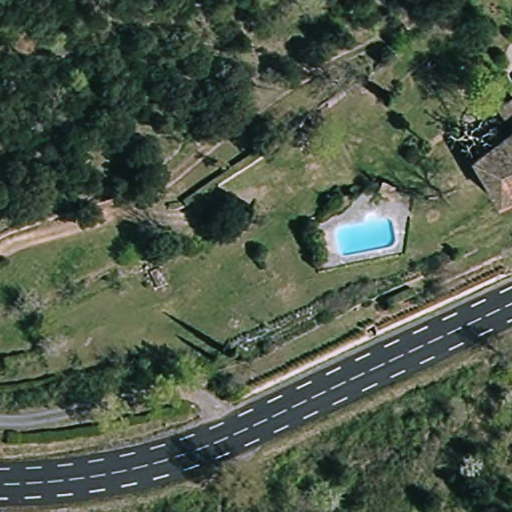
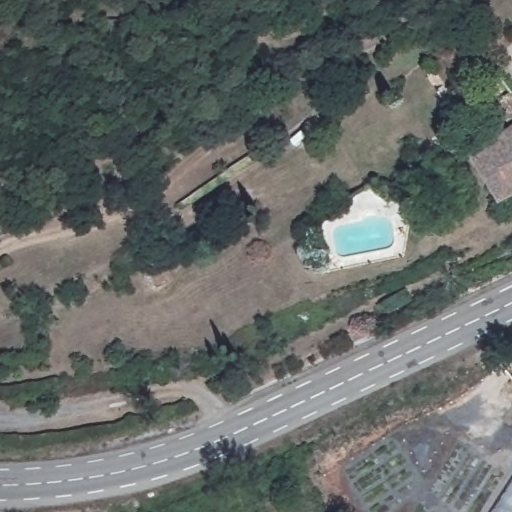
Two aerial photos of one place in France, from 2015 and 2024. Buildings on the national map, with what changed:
unchanged [(496,106),(512,94),(512,127),(496,106)]
unchanged [(512,127),(512,197),(501,204),(469,160),(512,127)]
new [(493,512),(512,482),(512,512),(493,512)]

